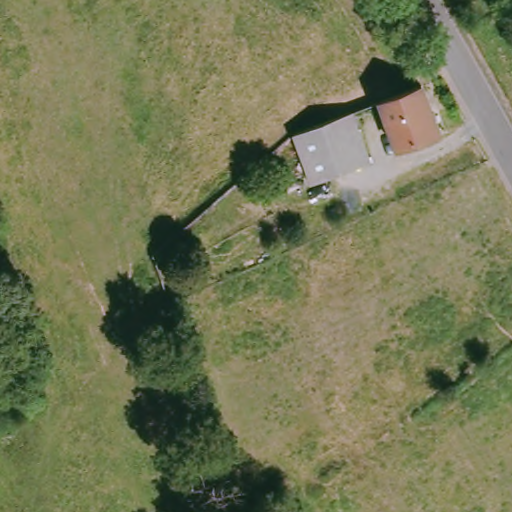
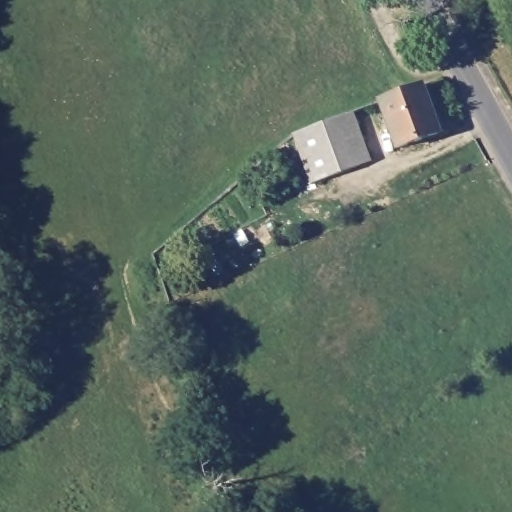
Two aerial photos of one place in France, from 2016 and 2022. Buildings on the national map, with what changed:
unchanged [(443,132),(400,148),(383,101),(425,84),(443,132)]
unchanged [(366,164),(320,182),(301,134),(349,116),(366,164)]

